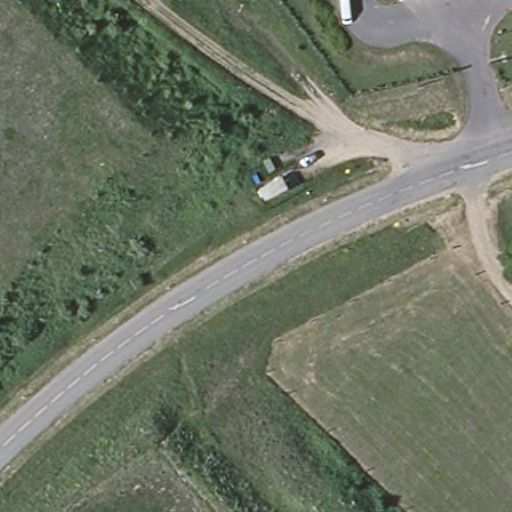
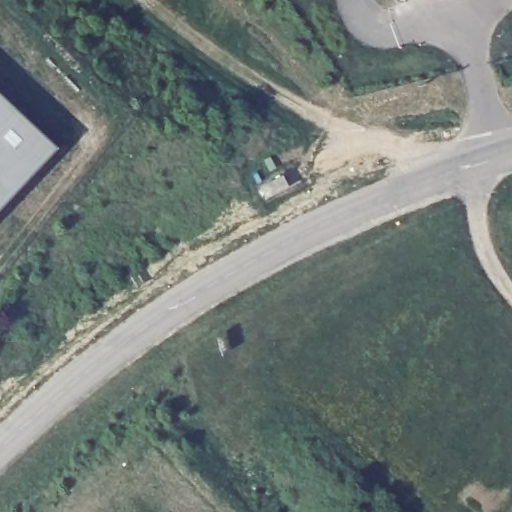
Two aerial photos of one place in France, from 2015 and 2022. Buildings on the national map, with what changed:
new [(0,209),(0,93),(58,147),(0,209)]

